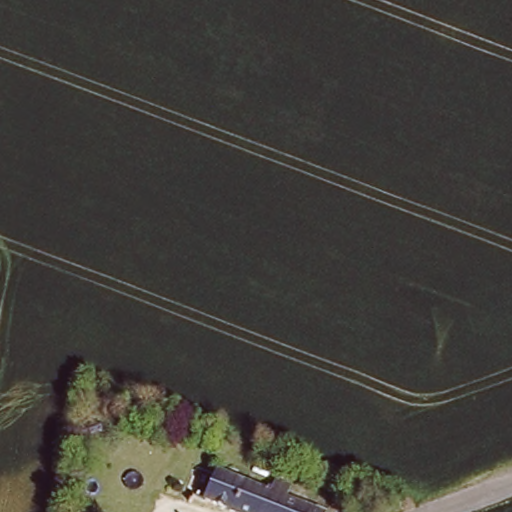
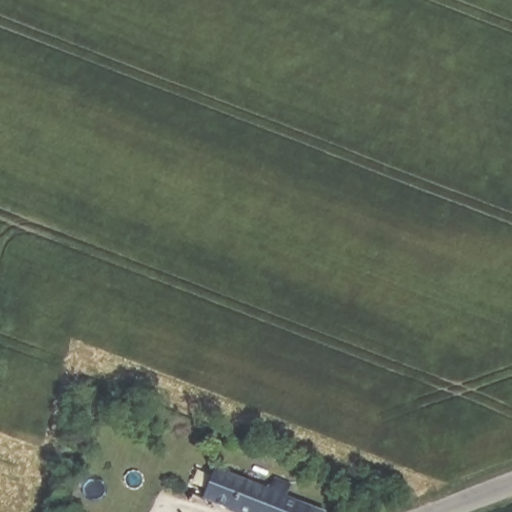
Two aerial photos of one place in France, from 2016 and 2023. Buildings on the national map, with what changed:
unchanged [(207,480),(215,483),(220,474),(230,478),(238,462),(278,477),(275,482),(292,490),(288,501),(316,512),(230,512),(207,501),(210,496),(200,492),(207,480)]

